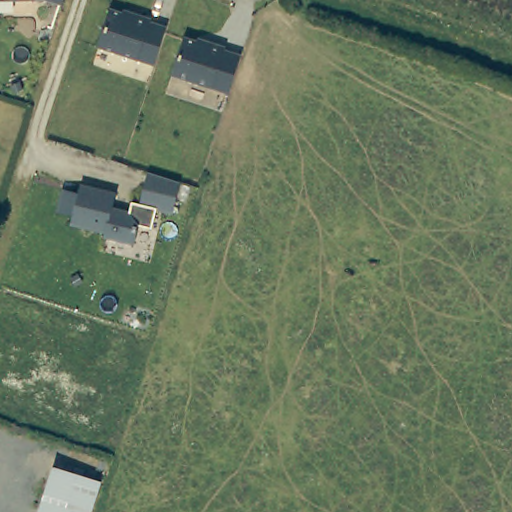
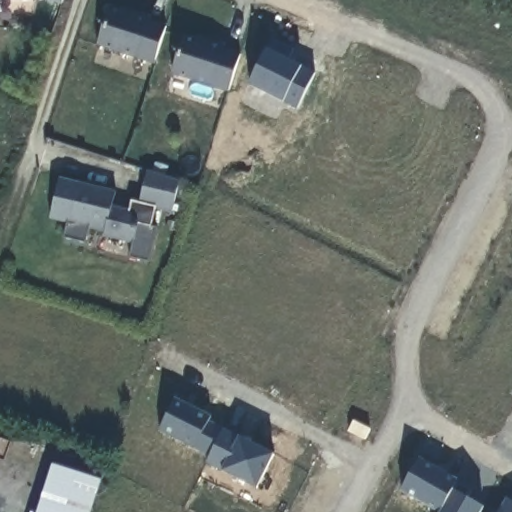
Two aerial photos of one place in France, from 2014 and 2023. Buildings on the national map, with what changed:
unchanged [(155,63),(98,45),(110,8),(133,16),(134,13),(151,18),(150,21),(167,26),(155,63)]
unchanged [(208,44),(209,41),(226,46),(225,49),(242,54),(230,91),(173,73),(185,36),(208,44)]
unchanged [(181,186),(171,216),(155,211),(148,233),(135,229),(129,247),(99,237),(100,233),(66,222),(69,213),(55,208),(62,186),(76,191),(79,182),(114,194),(110,208),(126,213),(130,204),(138,206),(148,175),(181,186)]
new [(161,430),(177,397),(213,415),(210,421),(225,428),(211,455),(161,430)]
new [(110,450),(87,443),(93,424),(117,432),(110,450)]
new [(225,428),(275,453),(258,487),(208,462),(225,428)]
new [(402,489),(420,458),(459,480),(441,512),(402,489)]
unchanged [(39,512),(55,465),(104,482),(94,512),(39,512)]
new [(468,498),(484,507),(481,512),(441,512),(459,480),(473,489),(468,498)]

